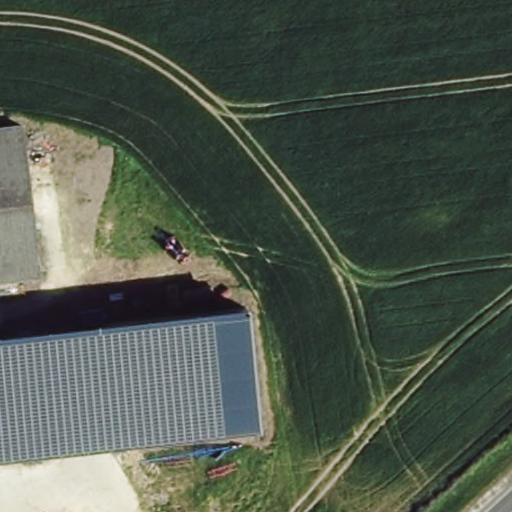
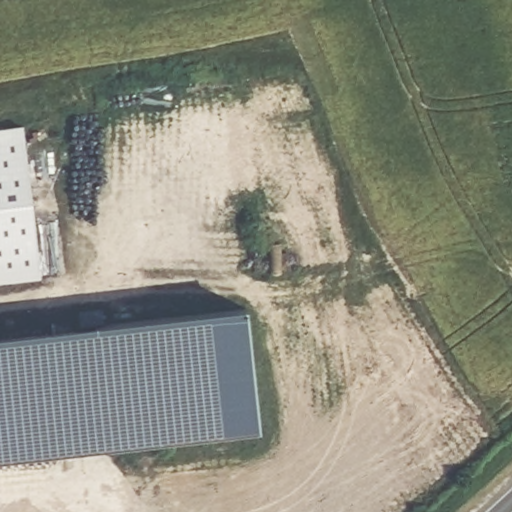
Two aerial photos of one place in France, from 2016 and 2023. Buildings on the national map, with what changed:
unchanged [(0,280),(0,126),(22,123),(41,276),(0,280)]
unchanged [(0,459),(0,331),(243,302),(260,429),(0,459)]

